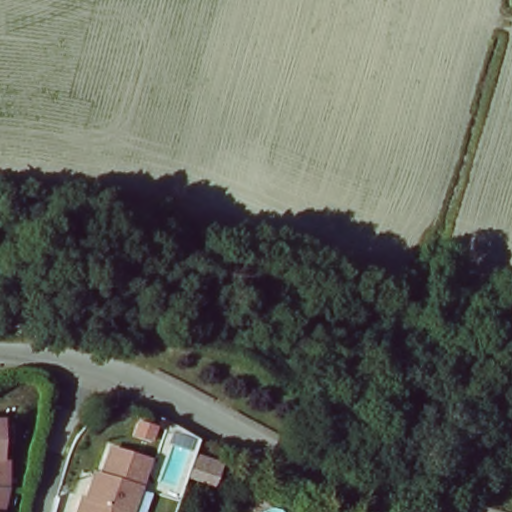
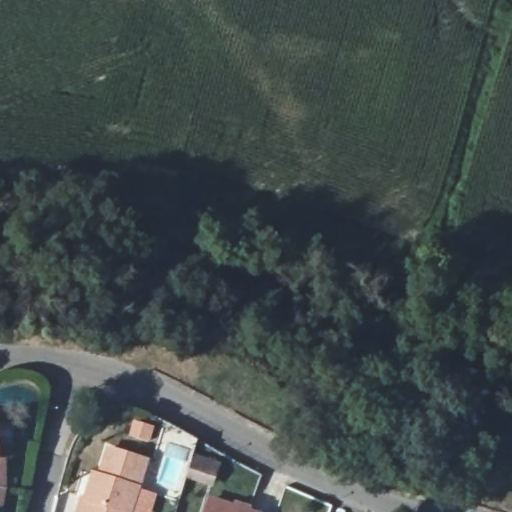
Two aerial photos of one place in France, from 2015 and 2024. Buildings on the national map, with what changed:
unchanged [(135,512),(77,512),(83,494),(87,495),(94,469),(101,471),(108,448),(151,461),(135,512)]
unchanged [(190,477),(198,457),(219,464),(211,485),(190,477)]
unchanged [(3,460),(3,492),(0,492),(0,460),(3,460)]
unchanged [(3,492),(0,507),(0,492),(3,492)]
new [(209,497),(235,504),(235,501),(253,506),(252,510),(257,512),(204,512),(209,497)]

